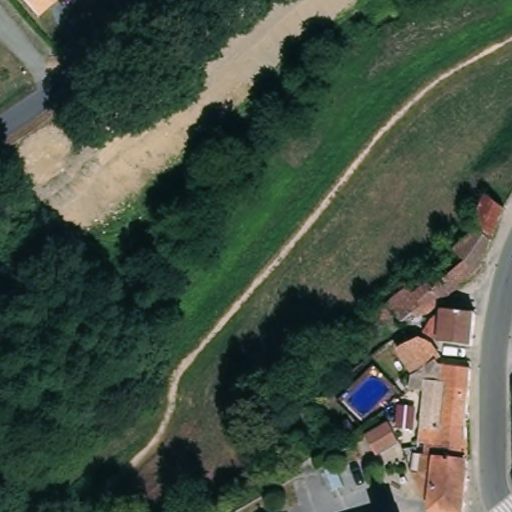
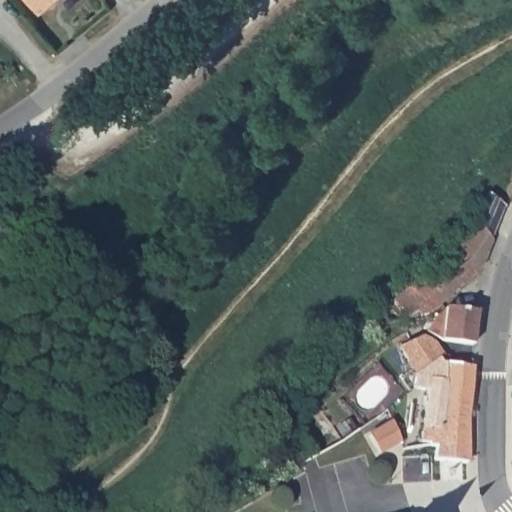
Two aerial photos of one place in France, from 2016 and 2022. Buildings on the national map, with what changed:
unchanged [(27,0),(55,0),(39,14),(27,0)]
unchanged [(368,317),(390,298),(404,287),(418,275),(422,272),(436,259),(438,257),(459,239),(472,227),(478,222),(472,215),(486,189),(488,186),(499,195),(505,199),(497,219),(480,261),(437,300),(434,302),(425,309),(408,315),(405,317),(403,315),(377,327),(368,317)]
unchanged [(442,340),(435,340),(420,327),(432,311),(441,306),(444,305),(465,307),(471,308),(466,343),(442,340)]
unchanged [(394,346),(416,335),(429,344),(435,355),(426,361),(409,373),(394,346)]
unchanged [(416,508),(417,499),(412,498),(402,473),(407,474),(411,454),(420,455),(421,446),(425,447),(426,445),(426,443),(410,442),(422,377),(435,380),(437,362),(461,365),(459,372),(463,372),(456,421),(456,429),(456,440),(454,460),(453,479),(449,512),(421,512),(415,511),(416,508)]
unchanged [(371,454),(365,436),(388,425),(395,443),(371,454)]
unchanged [(290,436),(304,428),(313,448),(315,452),(301,460),(299,455),(290,436)]
unchanged [(269,499),(280,496),(284,512),(272,512),(269,499)]

